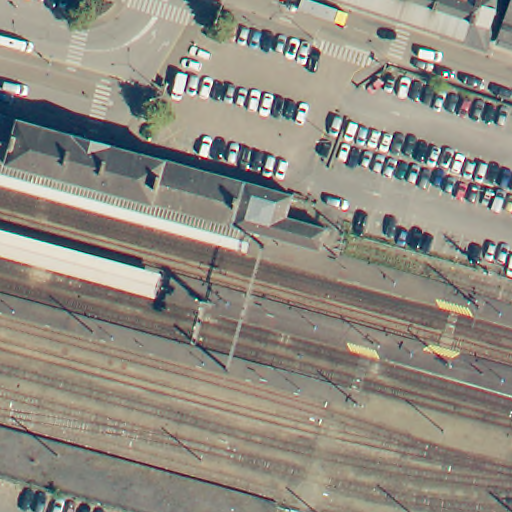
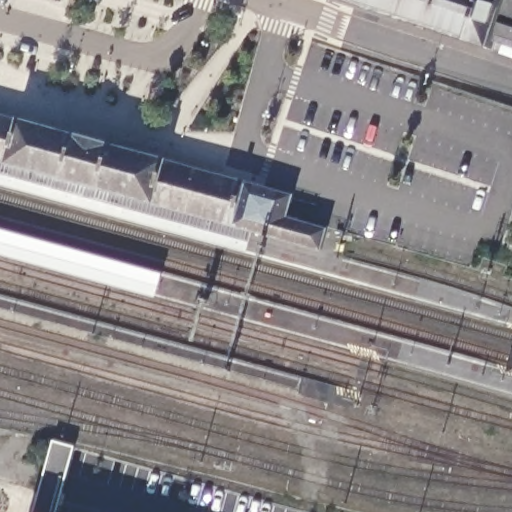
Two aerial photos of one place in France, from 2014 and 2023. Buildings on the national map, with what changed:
unchanged [(412,24),(339,0),(421,0),(415,16),(412,24)]
unchanged [(421,0),(507,0),(490,50),(412,24),(415,16),(421,0)]
unchanged [(490,50),(507,0),(512,0),(512,57),(490,50)]
unchanged [(328,231),(319,250),(251,229),(245,253),(0,184),(0,118),(320,201),(288,214),(328,231)]
new [(56,512),(36,512),(53,440),(74,447),(56,512)]

